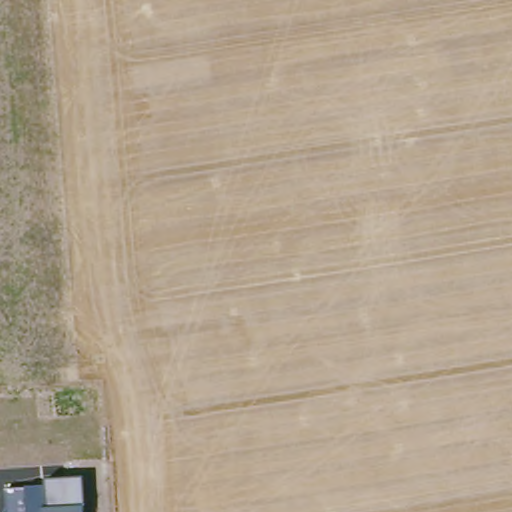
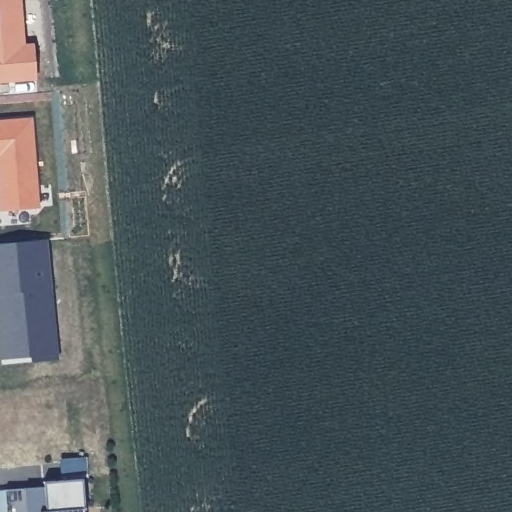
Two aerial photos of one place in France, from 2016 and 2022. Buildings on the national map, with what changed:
new [(23,47),(34,46),(36,79),(0,82),(0,0),(20,0),(23,47)]
new [(0,210),(0,121),(32,119),(40,209),(0,210)]
new [(30,360),(30,355),(1,358),(0,351),(0,244),(47,240),(61,356),(30,360)]
new [(45,485),(45,480),(83,480),(86,512),(9,512),(11,487),(45,485)]

